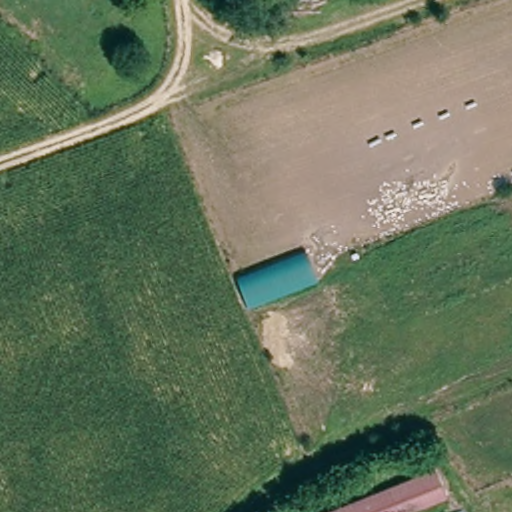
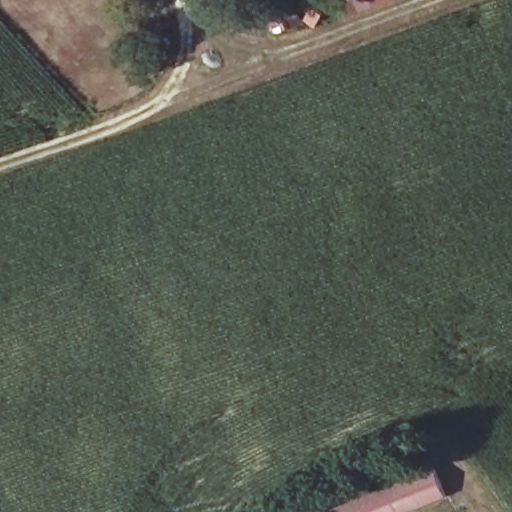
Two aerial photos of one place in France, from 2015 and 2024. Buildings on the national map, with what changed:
new [(235,278),(307,251),(320,283),(249,312),(235,278)]
unchanged [(435,464),(448,497),(413,512),(325,512),(435,464)]
unchanged [(462,511),(463,512),(460,512),(462,511)]

